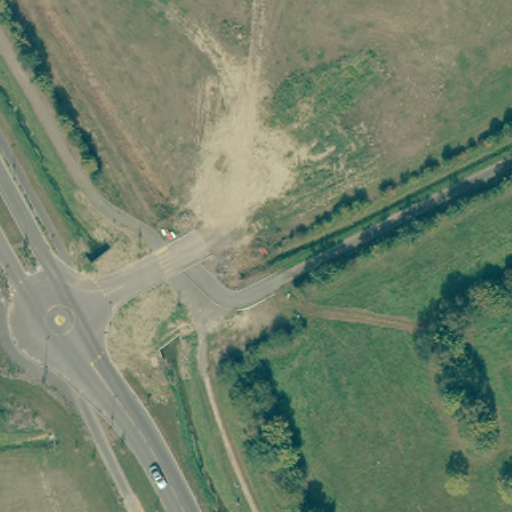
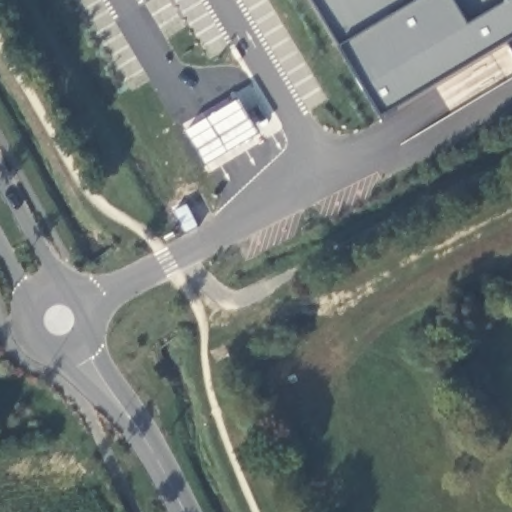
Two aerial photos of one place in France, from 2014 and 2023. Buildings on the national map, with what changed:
new [(509,43),(384,119),(342,48),(313,0),(512,0),(512,48),(509,43)]

